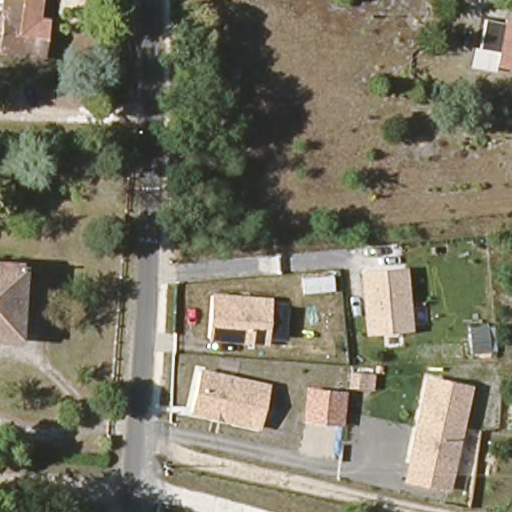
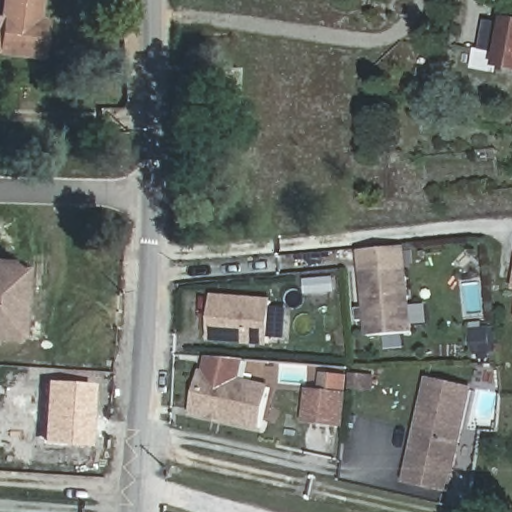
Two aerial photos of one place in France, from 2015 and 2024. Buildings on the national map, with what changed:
unchanged [(4,47),(4,46),(0,46),(0,30),(5,30),(9,0),(45,0),(43,16),(51,17),(46,53),(4,47)]
unchanged [(502,64),(505,52),(486,49),(491,21),(510,24),(510,19),(512,19),(512,66),(502,64)]
unchanged [(241,101),(224,100),(226,58),(244,59),(241,101)]
unchanged [(0,339),(0,265),(25,266),(19,339),(0,339)]
unchanged [(412,331),(367,334),(360,271),(407,266),(412,331)]
unchanged [(268,346),(207,341),(211,293),(272,296),(268,346)]
new [(494,328),(496,352),(471,354),(469,330),(494,328)]
unchanged [(271,383),(261,431),(192,415),(201,369),(271,383)]
unchanged [(475,386),(452,493),(404,483),(426,376),(475,386)]
new [(90,446),(42,443),(46,381),(95,384),(90,446)]
unchanged [(300,420),(305,388),(346,391),(342,424),(300,420)]

